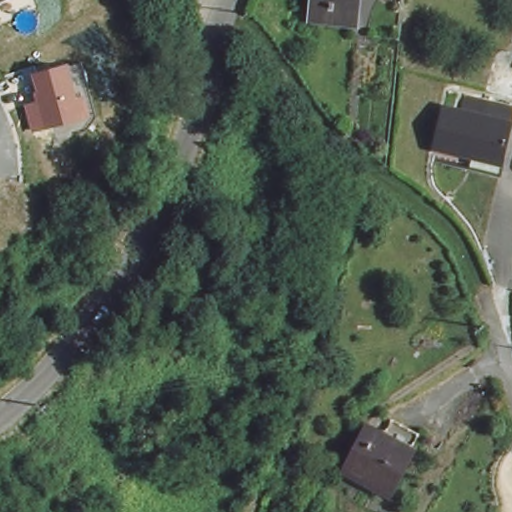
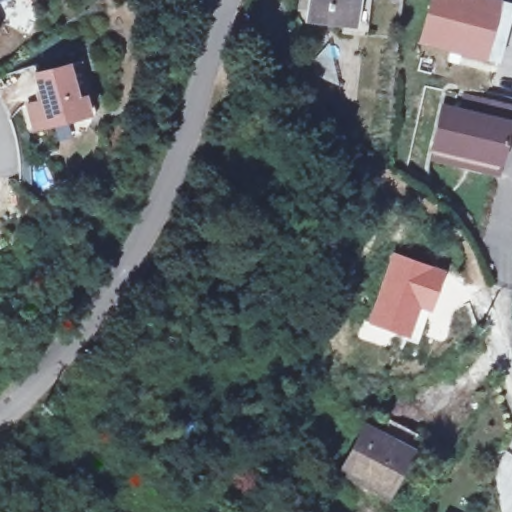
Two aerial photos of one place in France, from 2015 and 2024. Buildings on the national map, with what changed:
unchanged [(0,0),(3,0),(0,2),(0,0)]
unchanged [(312,23),(315,0),(358,0),(354,26),(312,23)]
new [(506,0),(512,2),(512,18),(500,62),(486,59),(484,61),(419,43),(430,0),(506,0)]
unchanged [(76,66),(89,116),(82,118),(43,129),(30,78),(61,69),(76,66)]
unchanged [(512,99),(499,165),(429,151),(441,100),(459,104),(463,89),(512,99)]
new [(390,250),(444,269),(430,311),(421,308),(410,339),(365,323),(390,250)]
unchanged [(334,469),(361,425),(376,435),(384,423),(411,438),(401,452),(376,493),(334,469)]

